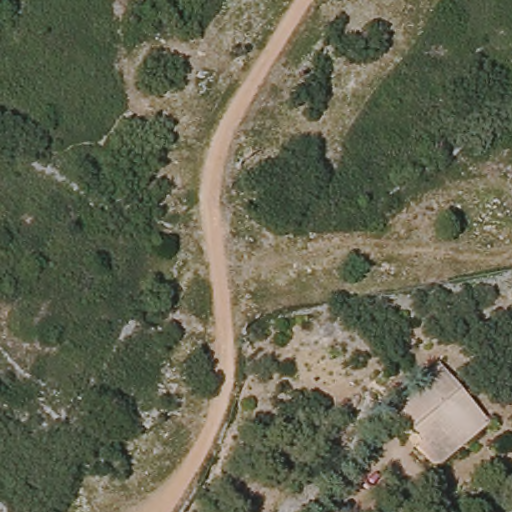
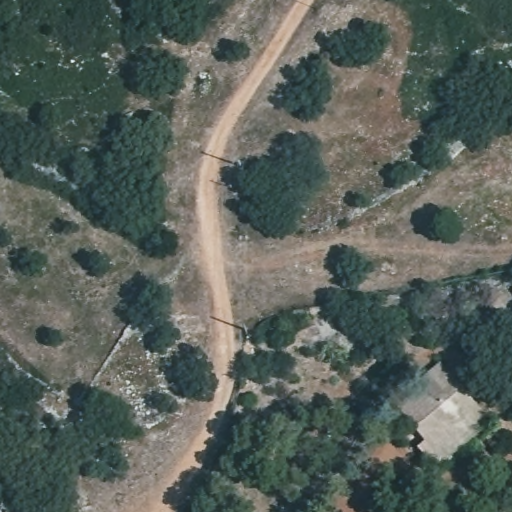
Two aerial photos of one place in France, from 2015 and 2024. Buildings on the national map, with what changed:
unchanged [(424,446),(389,405),(439,364),(473,404),(424,446)]
unchanged [(473,404),(489,422),(441,464),(424,446),(473,404)]

